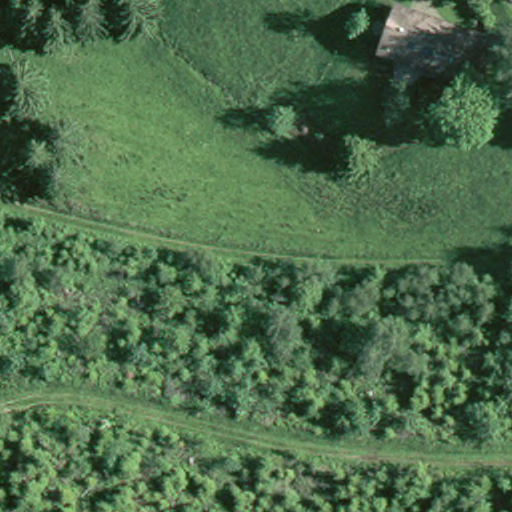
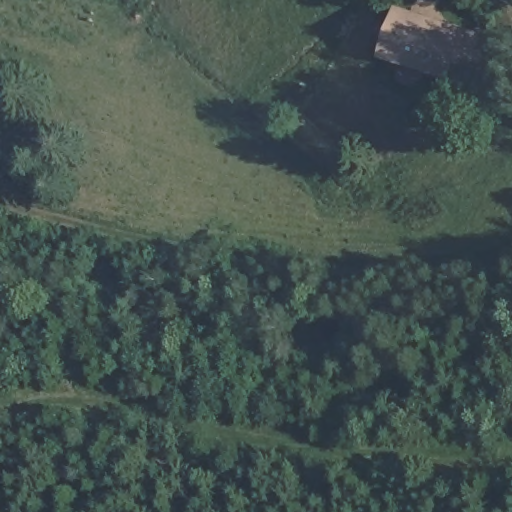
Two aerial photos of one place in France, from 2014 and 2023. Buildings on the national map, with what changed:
unchanged [(492,41),(486,82),(475,80),(386,59),(392,16),(492,41)]

